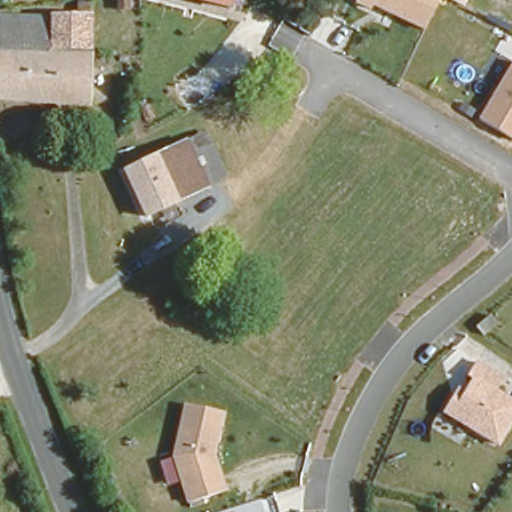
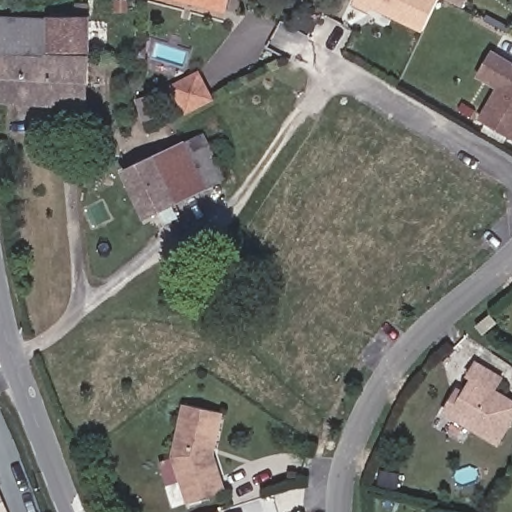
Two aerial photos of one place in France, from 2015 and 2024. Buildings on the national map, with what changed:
unchanged [(201,0),(225,0),(223,7),(201,0)]
unchanged [(360,4),(362,0),(442,0),(425,33),(360,4)]
new [(451,0),(469,0),(464,7),(451,0)]
unchanged [(41,21),(41,15),(67,17),(67,6),(81,7),(76,83),(87,84),(86,98),(76,98),(75,107),(45,104),(0,101),(0,19),(41,21)]
unchanged [(512,137),(480,117),(511,59),(512,60),(512,137)]
new [(199,75),(211,97),(184,110),(173,88),(199,75)]
unchanged [(151,209),(126,163),(150,150),(187,130),(195,146),(211,179),(151,209)]
unchanged [(465,395),(473,381),(468,375),(477,360),(506,376),(499,389),(512,397),(512,425),(499,447),(443,415),(457,391),(465,395)]
unchanged [(225,411),(216,453),(228,492),(187,504),(172,455),(183,402),(225,411)]
new [(5,512),(0,512),(0,498),(5,512)]

